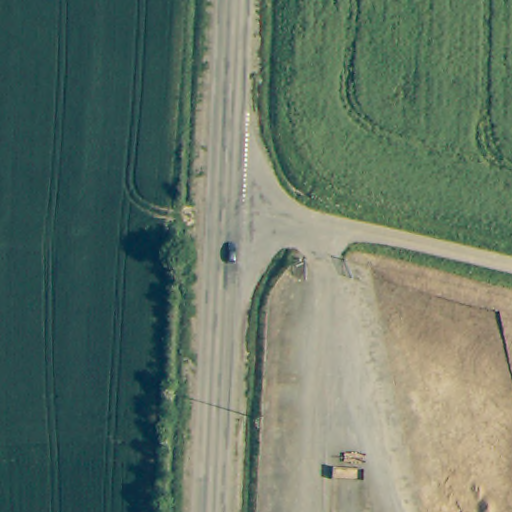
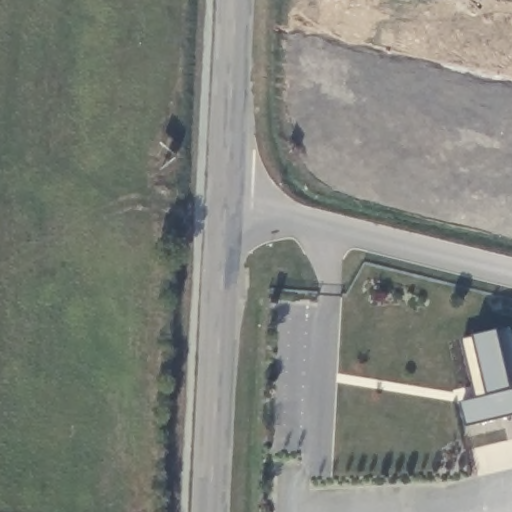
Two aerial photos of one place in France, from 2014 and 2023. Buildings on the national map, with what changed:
new [(460,404),(476,399),(462,341),(474,338),(500,333),(509,329),(512,342),(512,417),(466,429),(460,404)]

